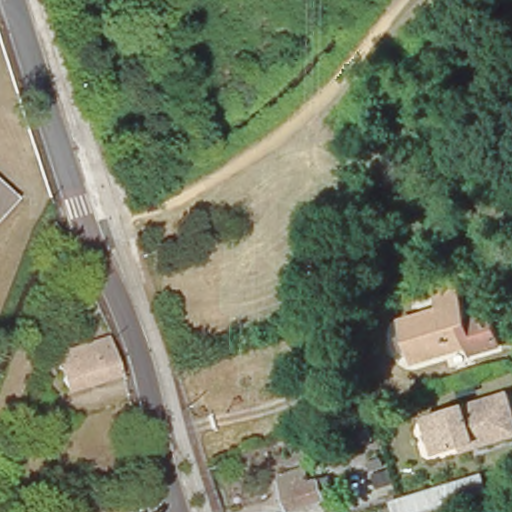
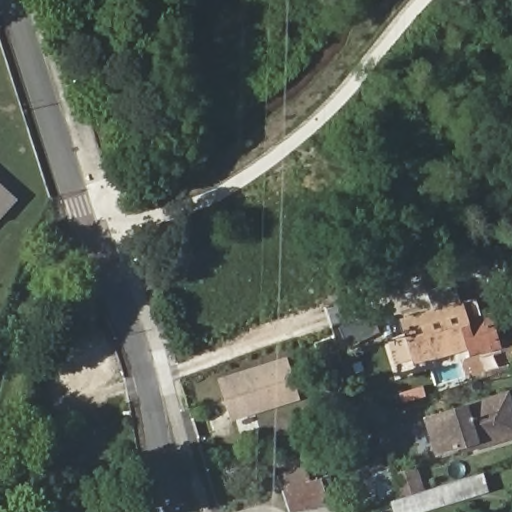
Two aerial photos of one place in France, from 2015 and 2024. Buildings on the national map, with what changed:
unchanged [(139,2),(143,0),(164,0),(170,14),(149,21),(139,2)]
unchanged [(15,204),(0,219),(0,190),(15,204)]
unchanged [(496,270),(510,270),(511,290),(496,291),(496,270)]
unchanged [(406,342),(401,324),(437,314),(431,294),(453,288),(463,326),(486,319),(494,350),(469,357),(467,350),(414,366),(411,356),(398,360),(394,346),(406,342)]
unchanged [(370,332),(341,342),(334,319),(362,310),(370,332)]
unchanged [(108,337),(120,375),(67,390),(56,353),(108,337)]
new [(218,378),(287,356),(294,377),(301,400),(232,421),(225,400),(218,378)]
unchanged [(426,450),(416,414),(503,387),(512,419),(512,430),(472,442),(457,446),(455,440),(426,450)]
unchanged [(343,447),(336,426),(361,418),(368,440),(343,447)]
unchanged [(394,487),(395,488),(378,493),(371,468),(387,463),(394,487)]
unchanged [(314,510),(312,504),(290,510),(278,475),(303,468),(307,482),(328,476),(335,497),(327,500),(329,506),(314,510)]
unchanged [(391,495),(396,493),(477,468),(482,485),(397,512),(391,495)]

